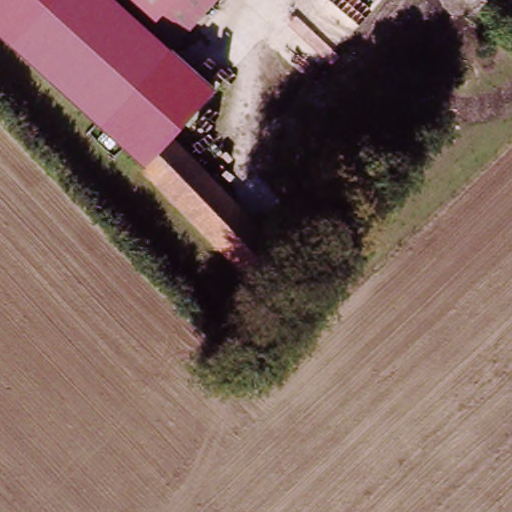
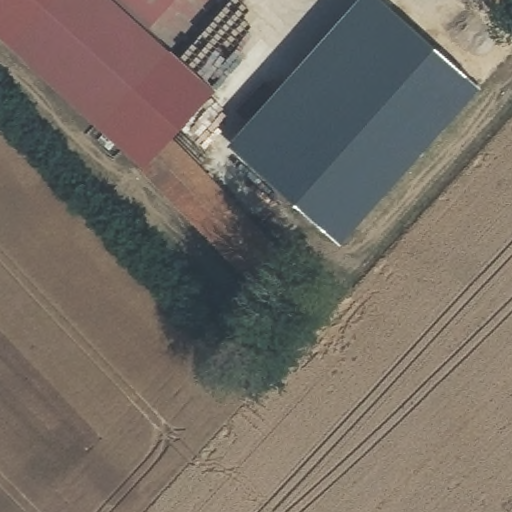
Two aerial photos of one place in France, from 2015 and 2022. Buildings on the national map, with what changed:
unchanged [(0,30),(0,0),(124,0),(171,43),(99,120),(0,30)]
unchanged [(124,0),(211,0),(171,43),(124,0)]
new [(383,0),(479,87),(340,244),(227,145),(357,0),(383,0)]
unchanged [(99,120),(171,43),(215,85),(168,136),(139,163),(99,120)]
unchanged [(168,136),(274,254),(249,278),(139,163),(168,136)]

